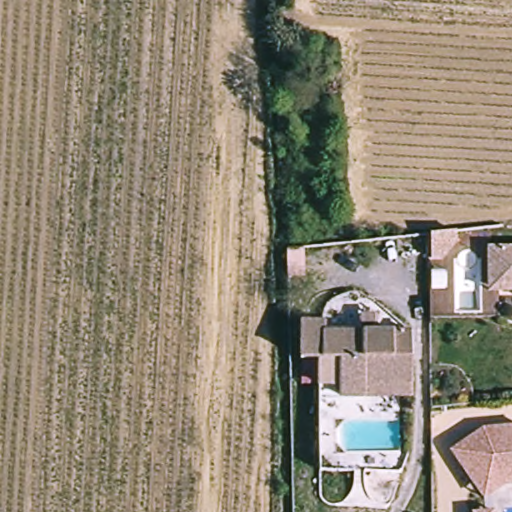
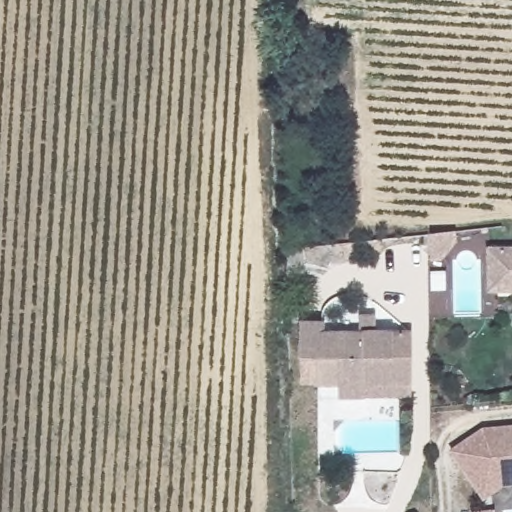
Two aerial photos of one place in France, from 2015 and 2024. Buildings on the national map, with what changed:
unchanged [(457,224),(458,235),(445,251),(433,252),(432,227),(457,224)]
unchanged [(485,297),(482,255),(492,254),(512,253),(512,296),(485,297)]
unchanged [(320,364),(297,364),(297,328),(320,328),(320,333),(354,333),(353,312),(370,312),(370,333),(385,333),(385,354),(385,359),(390,359),(390,388),(372,388),(360,388),(360,400),(340,400),(340,389),(320,389),(320,364)]
unchanged [(408,332),(409,388),(390,388),(390,359),(385,359),(385,354),(385,333),(397,332),(408,332)]
unchanged [(505,467),(482,482),(458,446),(490,425),(512,423),(512,466),(505,467)]
unchanged [(505,467),(512,466),(512,481),(509,482),(490,495),(482,482),(505,467)]
unchanged [(503,508),(504,512),(483,512),(483,510),(503,508)]

